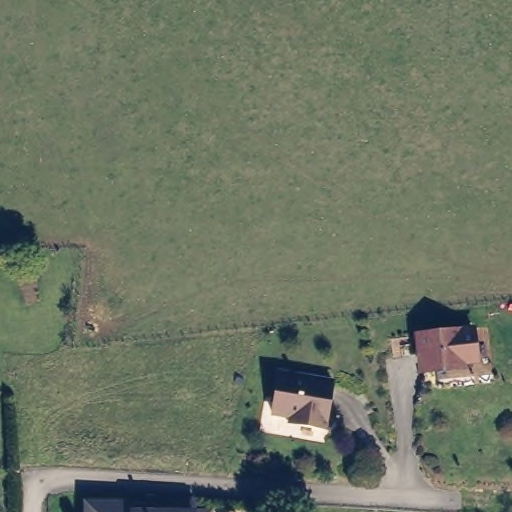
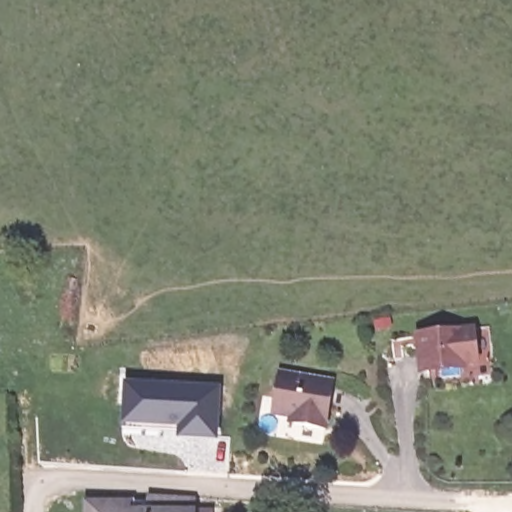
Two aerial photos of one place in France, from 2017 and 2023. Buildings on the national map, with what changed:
unchanged [(476,368),(462,370),(461,376),(425,380),(421,343),(472,338),(476,368)]
unchanged [(283,412),(269,411),(275,372),(327,382),(319,428),(295,424),(284,422),(283,412)]
new [(177,440),(177,427),(122,426),(123,382),(221,386),(219,440),(177,440)]
unchanged [(200,506),(200,512),(92,512),(92,509),(156,509),(156,504),(200,506)]

